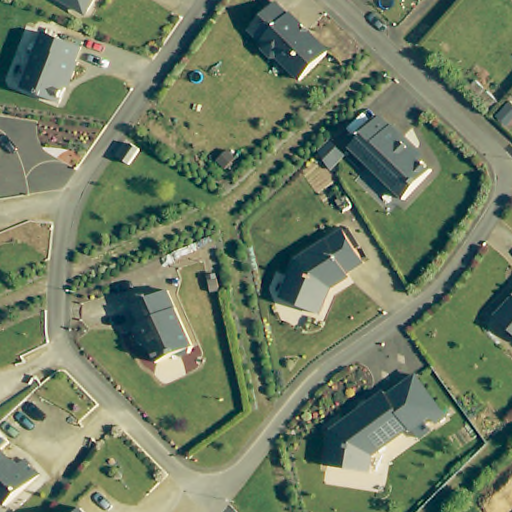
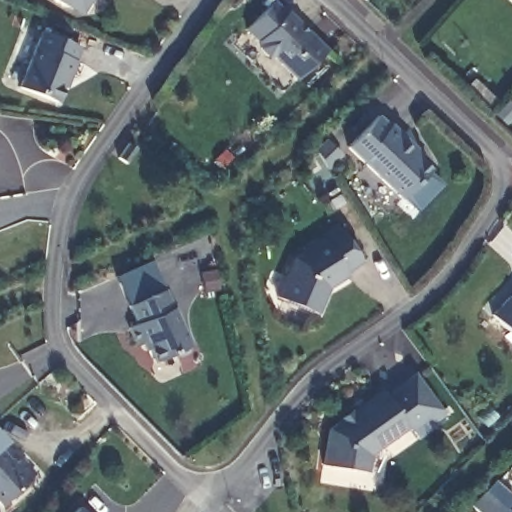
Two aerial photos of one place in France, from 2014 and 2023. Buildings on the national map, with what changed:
unchanged [(74,5),(67,7),(56,0),(77,0),(74,5)]
unchanged [(264,0),(272,0),(280,8),(282,7),(294,19),(294,22),(298,26),(301,25),(320,45),(293,73),(269,50),(264,50),(256,42),(255,37),(242,22),(264,0)]
unchanged [(36,27),(74,41),(69,55),(71,56),(64,72),(63,71),(53,96),(16,82),(36,27)]
unchanged [(343,142),(373,110),(384,121),(386,119),(411,142),(406,147),(426,165),(398,194),(343,142)]
unchanged [(125,136),(133,142),(122,157),(114,152),(125,136)]
unchanged [(331,223),(353,256),(337,267),(339,271),(320,282),(314,287),(311,292),(314,296),(309,308),(269,292),(284,253),(331,223)]
unchanged [(160,286),(186,342),(185,343),(184,348),(174,352),(169,350),(150,358),(141,337),(134,341),(125,323),(134,320),(125,301),(160,286)]
unchanged [(489,310),(512,286),(512,332),(489,310)]
unchanged [(320,430),(372,390),(375,394),(404,372),(429,408),(419,416),(401,430),(399,427),(362,455),(359,472),(315,467),(320,430)]
unchanged [(19,455),(33,471),(0,500),(0,450),(10,462),(19,455)]
new [(481,512),(473,505),(497,481),(512,496),(512,502),(504,512),(481,512)]
unchanged [(84,512),(67,512),(75,503),(84,512)]

